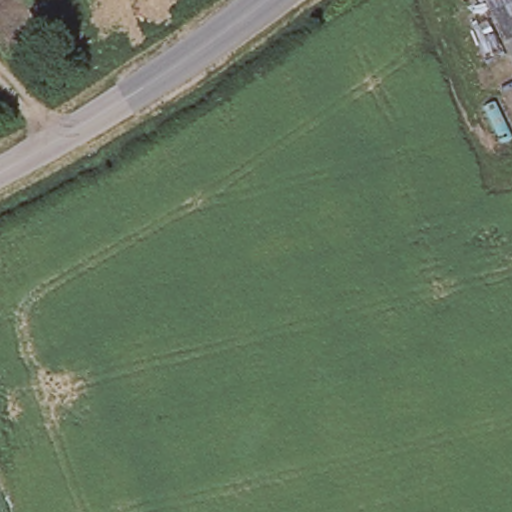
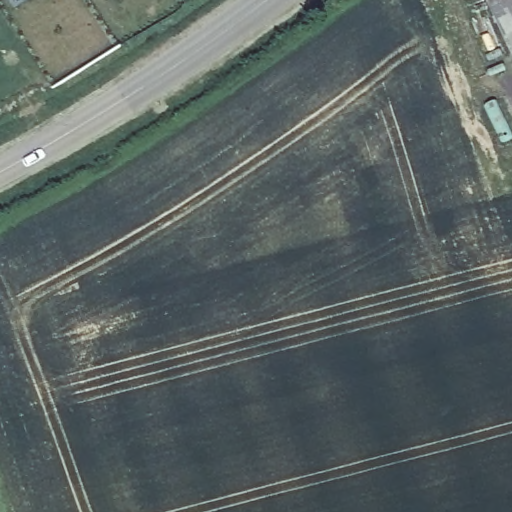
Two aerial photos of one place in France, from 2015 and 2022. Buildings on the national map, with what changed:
unchanged [(512,58),(486,0),(512,0),(512,58)]

